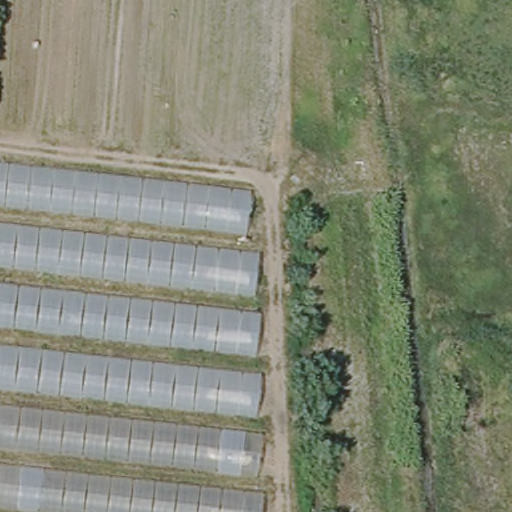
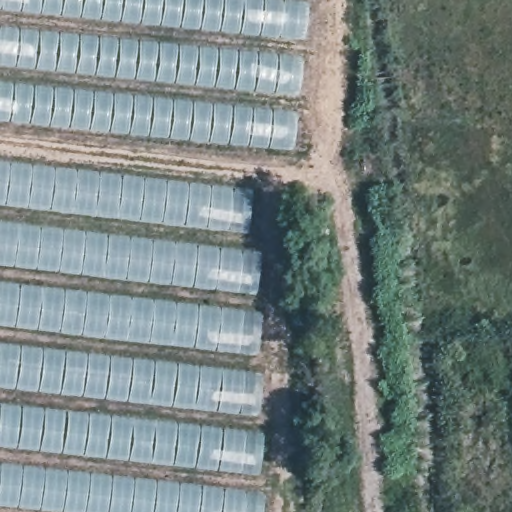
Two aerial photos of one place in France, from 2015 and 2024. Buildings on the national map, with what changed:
new [(304,38),(266,36),(137,25),(0,9),(0,0),(307,0),(304,38)]
new [(266,51),(303,56),(298,95),(257,92),(176,85),(0,64),(0,25),(266,51)]
new [(296,112),(292,148),(0,120),(0,82),(296,112)]
unchanged [(260,512),(0,512),(0,160),(256,189),(260,512)]

